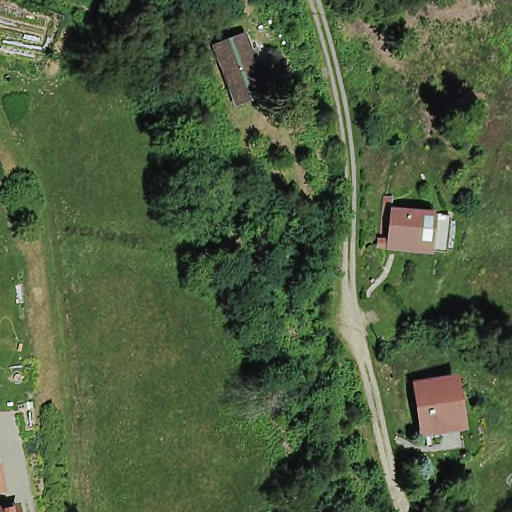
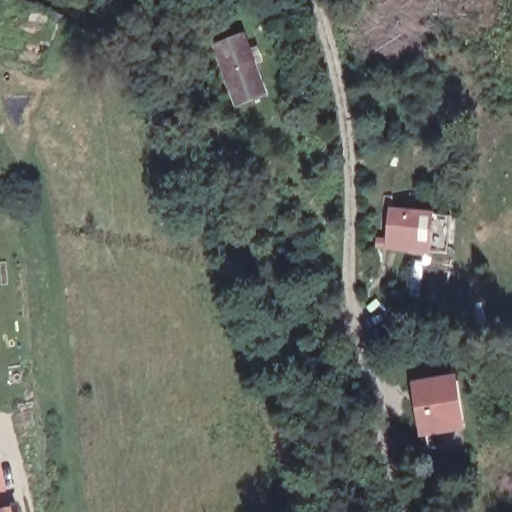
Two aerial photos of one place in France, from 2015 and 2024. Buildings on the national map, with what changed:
unchanged [(257,46),(249,50),(265,94),(236,105),(218,59),(210,61),(206,49),(214,46),(252,31),(257,46)]
unchanged [(440,248),(407,245),(408,240),(402,240),(405,214),(410,215),(442,217),(440,248)]
unchanged [(415,389),(452,382),(456,421),(421,427),(415,389)]
unchanged [(9,487),(10,495),(3,496),(0,496),(0,472),(6,471),(9,487)]
unchanged [(0,496),(3,512),(0,512),(0,496)]

